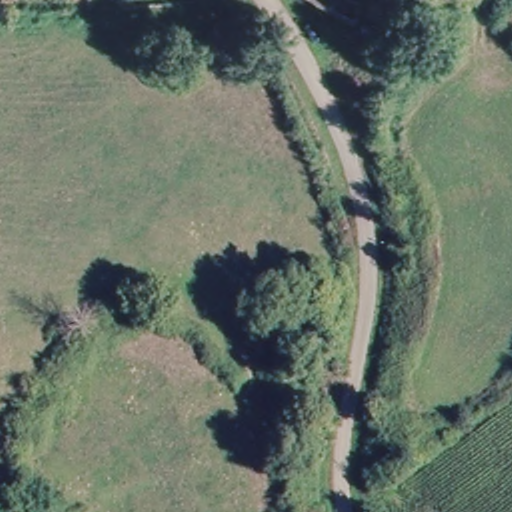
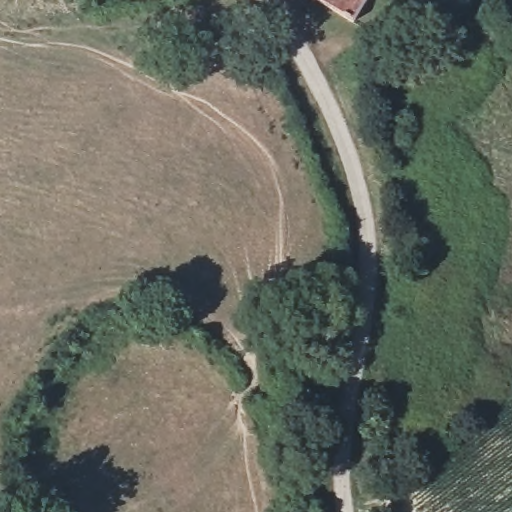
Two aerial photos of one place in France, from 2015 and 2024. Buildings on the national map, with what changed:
new [(312,0),(362,0),(347,25),(312,0)]

